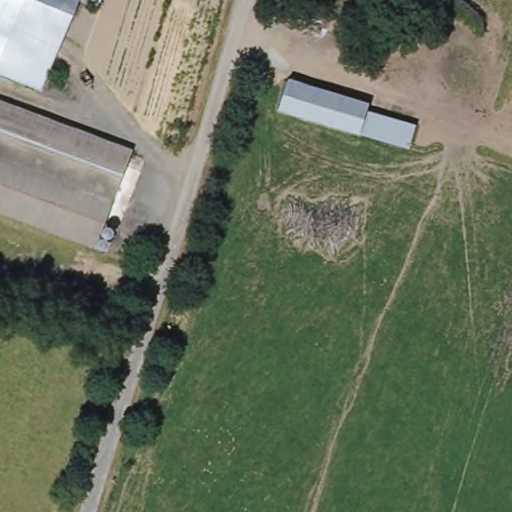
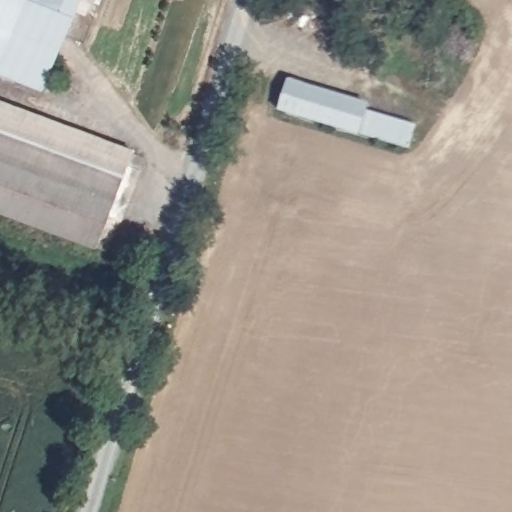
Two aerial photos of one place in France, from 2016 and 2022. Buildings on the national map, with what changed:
unchanged [(0,73),(0,0),(78,0),(40,89),(0,73)]
unchanged [(78,0),(94,0),(92,4),(78,0)]
unchanged [(367,100),(359,130),(281,109),(289,77),(367,100)]
unchanged [(131,151),(94,248),(0,213),(0,102),(131,151)]

